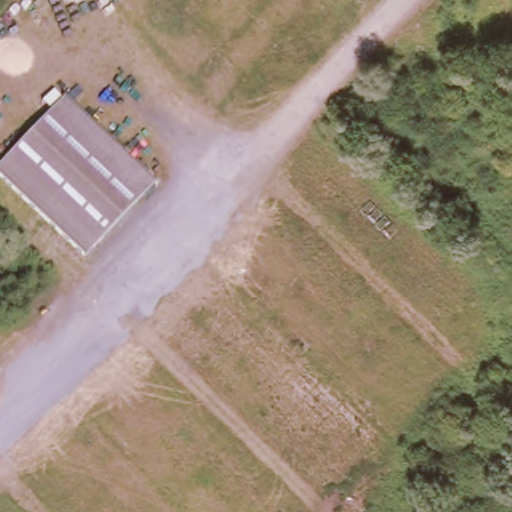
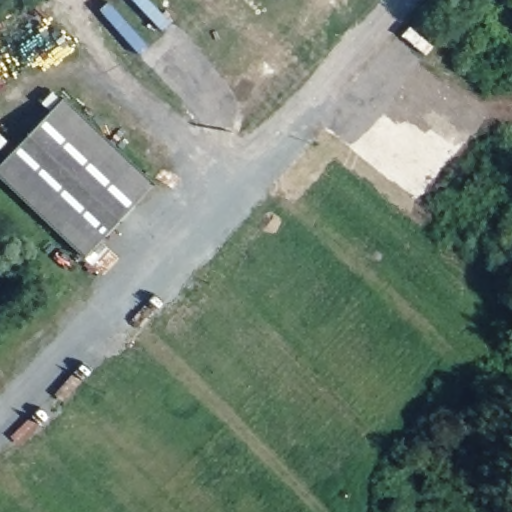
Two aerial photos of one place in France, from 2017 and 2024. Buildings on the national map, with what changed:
unchanged [(0,178),(0,170),(69,101),(160,186),(86,261),(0,178)]

